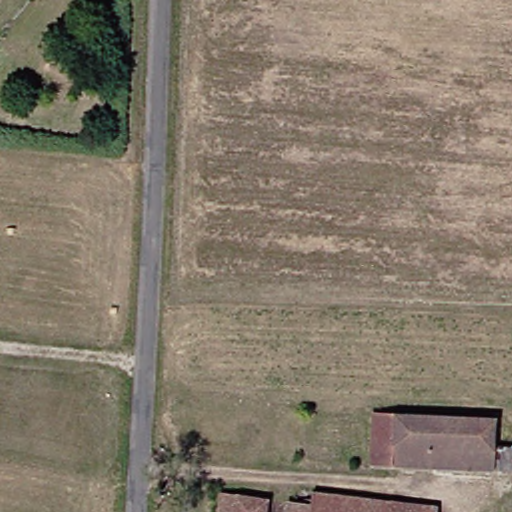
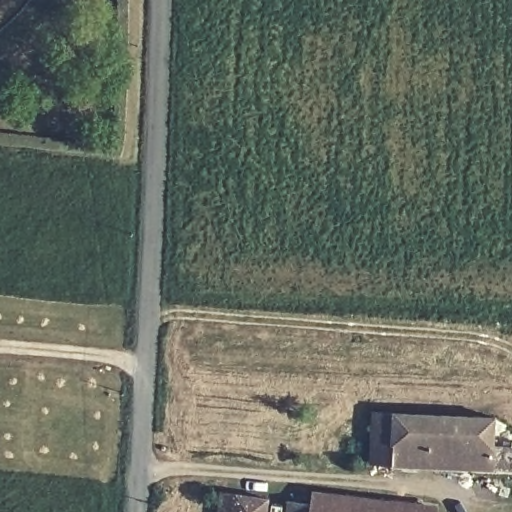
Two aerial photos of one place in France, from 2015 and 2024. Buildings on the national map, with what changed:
unchanged [(502,423),(500,450),(512,451),(512,474),(494,473),(374,469),(377,416),(502,423)]
unchanged [(271,499),(270,512),(218,512),(220,494),(271,499)]
unchanged [(441,507),(441,512),(290,512),(292,501),(316,502),(318,494),(441,507)]

